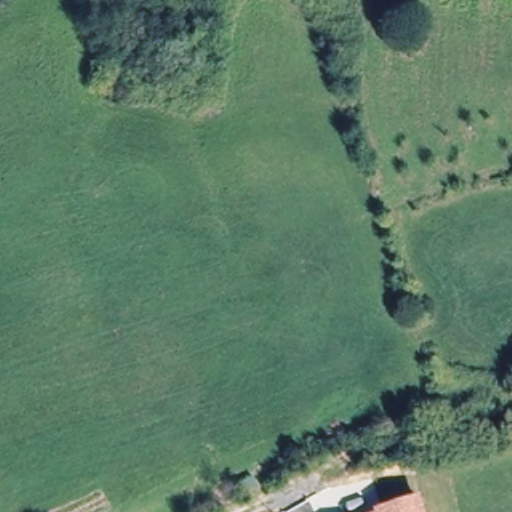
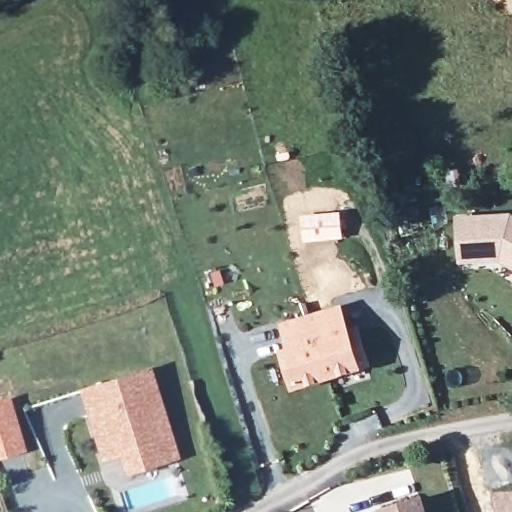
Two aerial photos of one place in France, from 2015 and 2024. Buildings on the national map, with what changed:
new [(499,261),(457,264),(455,215),(510,213),(512,213),(512,269),(499,261)]
new [(342,303),(350,328),(359,324),(372,366),(361,370),(291,392),(279,349),(286,347),(280,322),(342,303)]
new [(150,366),(178,458),(125,474),(119,455),(101,461),(78,390),(150,366)]
new [(26,453),(0,460),(0,399),(10,396),(26,453)]
new [(512,491),(512,512),(496,512),(495,492),(512,491)]
unchanged [(421,495),(427,512),(379,512),(378,508),(421,495)]

